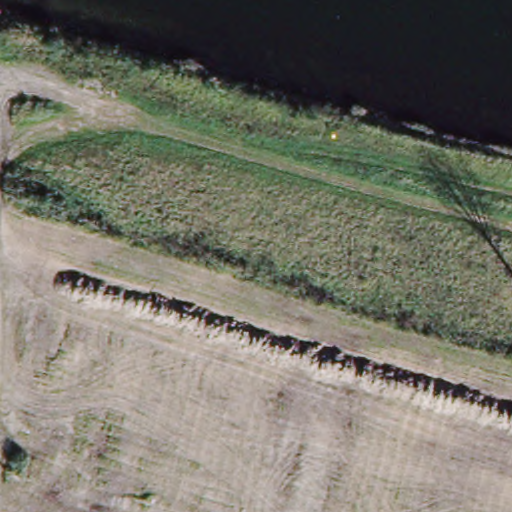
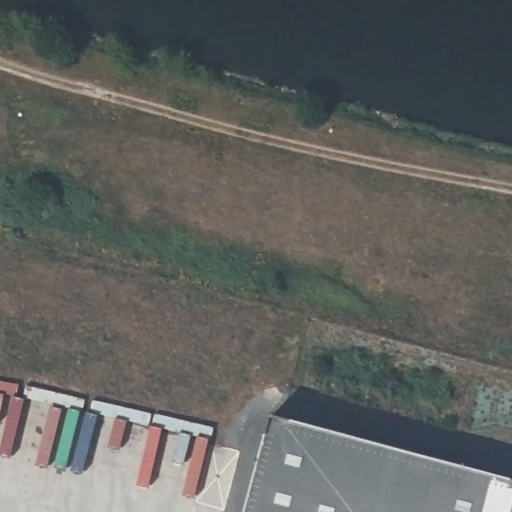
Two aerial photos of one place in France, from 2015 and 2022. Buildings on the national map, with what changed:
new [(512,512),(245,512),(270,417),(512,482),(512,512)]

